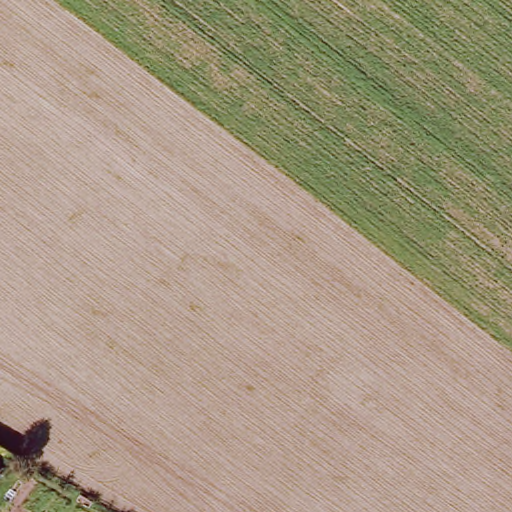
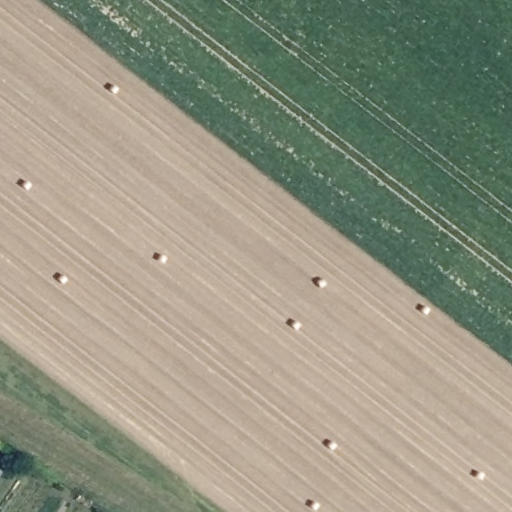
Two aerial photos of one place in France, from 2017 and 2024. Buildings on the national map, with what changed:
unchanged [(0,479),(0,476),(2,477),(0,479)]

